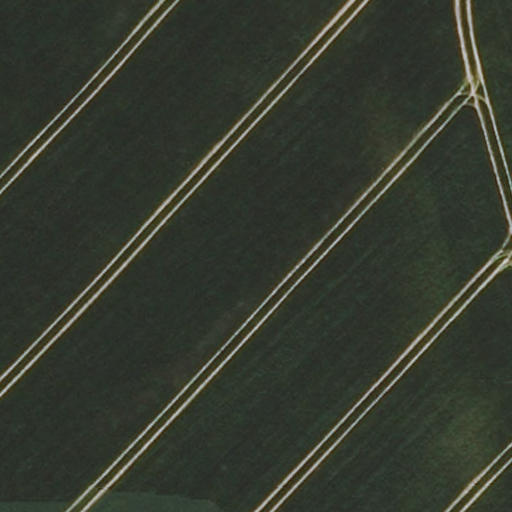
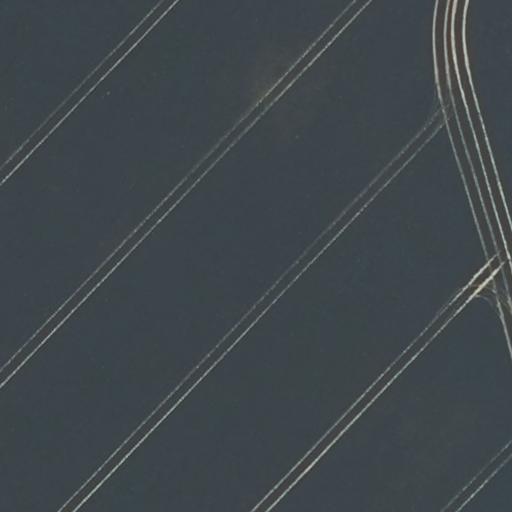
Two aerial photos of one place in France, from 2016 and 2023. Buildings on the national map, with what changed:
[]

